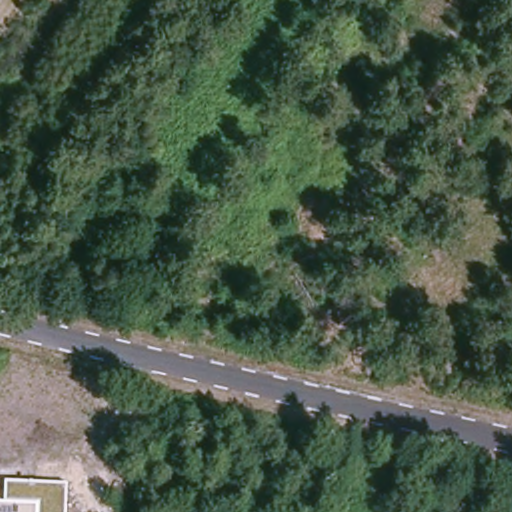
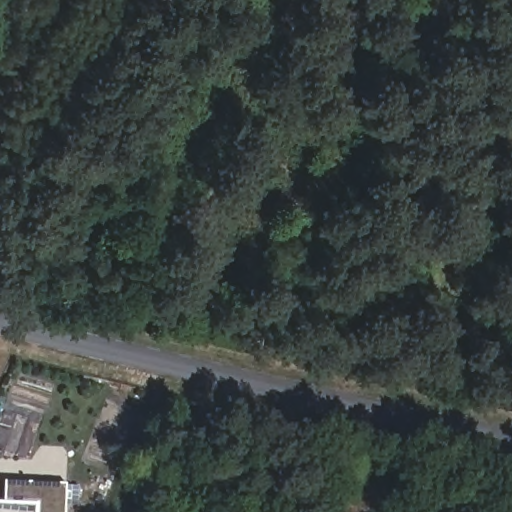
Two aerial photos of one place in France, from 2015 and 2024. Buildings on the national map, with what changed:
unchanged [(0,512),(0,501),(5,501),(6,480),(70,483),(67,512),(0,512)]

